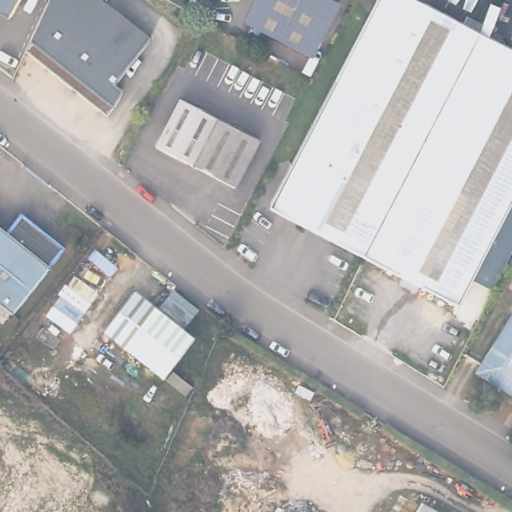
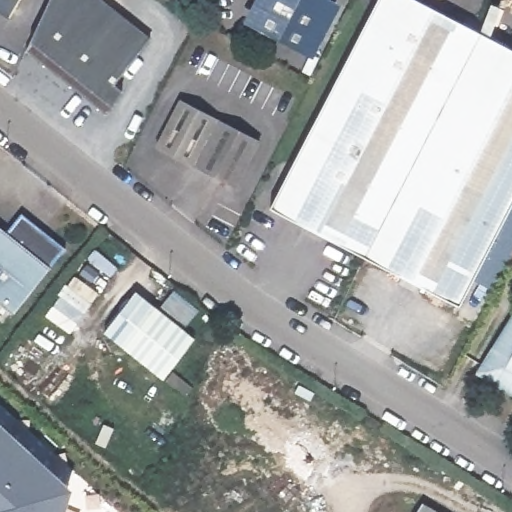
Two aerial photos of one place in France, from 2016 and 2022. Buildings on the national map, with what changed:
unchanged [(5,27),(0,24),(0,0),(22,0),(5,27)]
unchanged [(117,85),(126,92),(115,106),(109,114),(27,51),(50,2),(51,0),(103,0),(152,39),(117,85)]
unchanged [(305,53),(252,25),(265,0),(332,0),(305,53)]
unchanged [(463,24),(467,16),(483,25),(480,32),(430,131),(365,257),(270,208),(378,0),(417,0),(463,24)]
unchanged [(512,49),(512,174),(430,131),(480,32),(512,49)]
unchanged [(218,125),(194,172),(155,148),(178,105),(218,125)]
unchanged [(238,195),(194,172),(218,125),(262,146),(238,195)]
unchanged [(512,174),(512,204),(459,306),(365,257),(430,131),(512,174)]
unchanged [(22,209),(65,242),(14,306),(0,295),(0,224),(6,229),(22,209)]
unchanged [(179,288),(203,308),(186,328),(199,338),(168,377),(109,330),(140,291),(162,310),(179,288)]
unchanged [(512,326),(512,403),(478,382),(512,326)]
new [(66,512),(0,512),(0,421),(74,489),(66,512)]
unchanged [(437,512),(416,512),(422,503),(437,512)]

